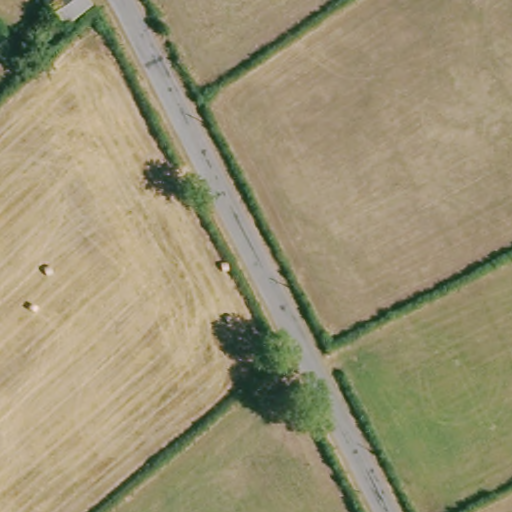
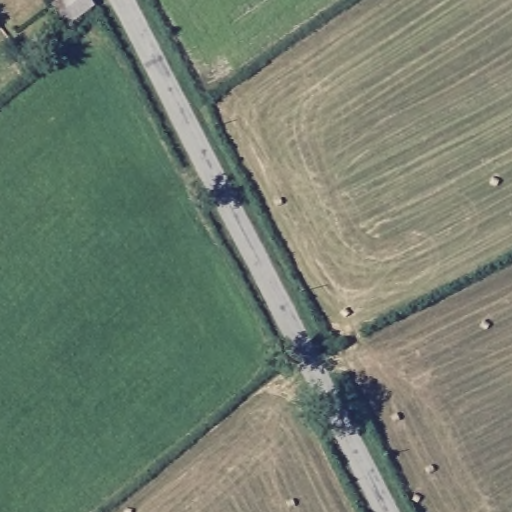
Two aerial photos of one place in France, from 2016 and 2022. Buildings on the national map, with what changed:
unchanged [(58,7),(65,0),(101,0),(106,5),(83,31),(58,7)]

